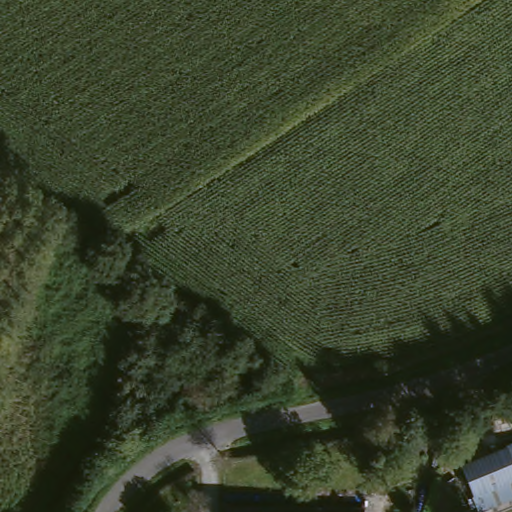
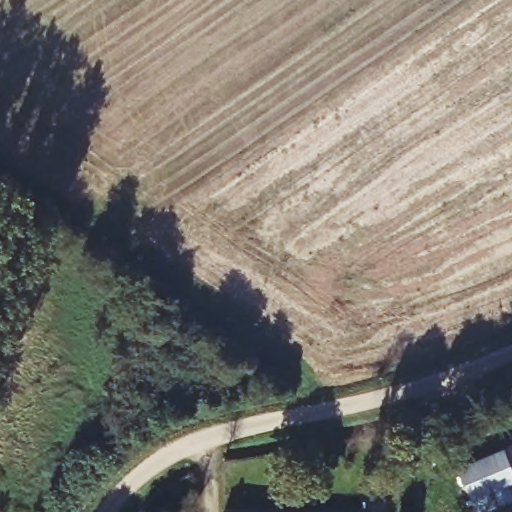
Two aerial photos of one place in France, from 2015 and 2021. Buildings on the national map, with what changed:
unchanged [(502,452),(512,472),(512,483),(473,501),(460,472),(502,452)]
unchanged [(228,511),(366,512),(228,512),(228,511)]

